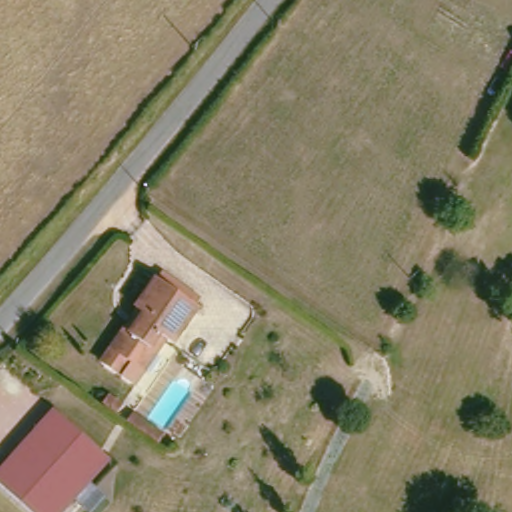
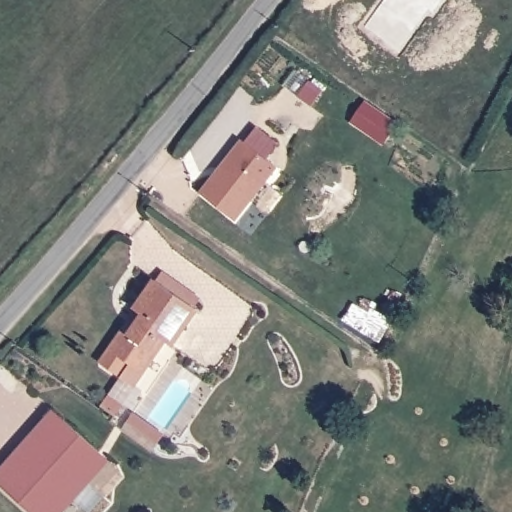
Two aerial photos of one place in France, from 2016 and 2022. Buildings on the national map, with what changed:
new [(238,221),(201,192),(241,140),(244,142),(256,128),(279,144),(267,160),(277,168),(238,221)]
unchanged [(103,364),(113,351),(131,326),(136,328),(144,315),(137,309),(156,283),(201,309),(176,344),(169,339),(146,373),(129,362),(120,375),(103,364)]
unchanged [(50,410),(111,458),(93,479),(33,431),(50,410)]
unchanged [(66,512),(35,512),(0,484),(0,470),(33,431),(93,479),(66,512)]

